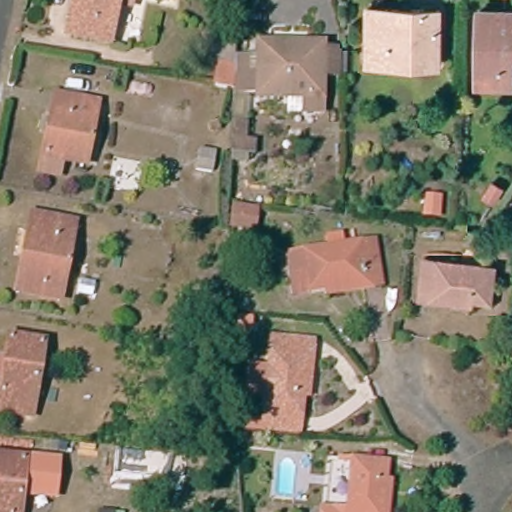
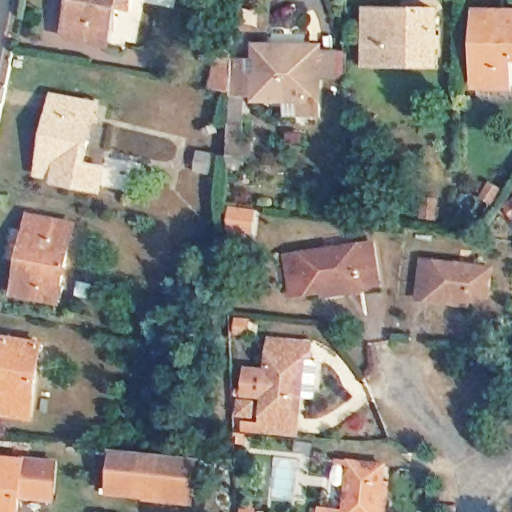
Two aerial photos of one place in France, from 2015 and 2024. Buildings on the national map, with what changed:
unchanged [(111,16),(105,51),(63,42),(66,22),(70,0),(130,0),(127,20),(111,16)]
unchanged [(367,59),(367,11),(432,11),(432,70),(410,71),(367,70),(367,59)]
unchanged [(511,87),(478,86),(480,11),(503,12),(512,12),(512,62),(511,87)]
unchanged [(296,98),(226,95),(226,90),(209,87),(209,67),(227,67),(227,61),(200,60),(201,34),(228,34),(227,54),(244,57),(244,72),(255,73),(255,47),(320,50),(320,52),(337,53),(336,81),(318,81),(317,99),(316,115),(295,114),(296,98)]
unchanged [(95,107),(85,169),(60,165),(57,180),(39,175),(45,138),(49,118),(52,99),(95,107)]
unchanged [(228,121),(243,124),(241,139),(252,140),(250,156),(227,153),(228,121)]
unchanged [(215,175),(196,172),(200,151),(217,154),(215,175)]
unchanged [(72,230),(57,303),(14,294),(20,262),(25,234),(28,221),(72,230)]
unchanged [(318,292),(286,297),(283,257),(370,246),(375,294),(359,296),(320,301),(318,292)]
unchanged [(435,306),(436,300),(420,297),(423,260),(495,269),(490,300),(470,297),(469,310),(435,306)]
unchanged [(0,410),(0,380),(9,335),(39,341),(25,416),(0,410)]
unchanged [(310,343),(308,358),(304,396),(298,395),(294,435),(292,435),(260,432),(263,394),(244,392),(245,368),(265,370),(268,339),(310,343)]
new [(201,458),(196,506),(108,495),(114,448),(201,458)]
demolished [(135,486),(116,484),(120,457),(138,459),(135,486)]
unchanged [(11,500),(10,512),(0,512),(0,463),(15,464),(48,467),(45,502),(11,500)]
unchanged [(346,463),(380,467),(379,485),(387,485),(385,512),(341,512),(346,463)]

